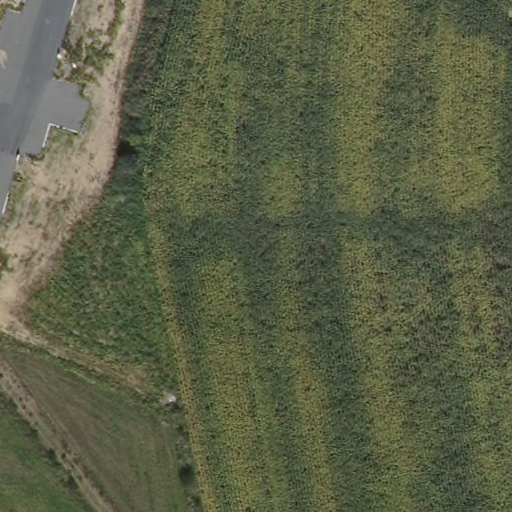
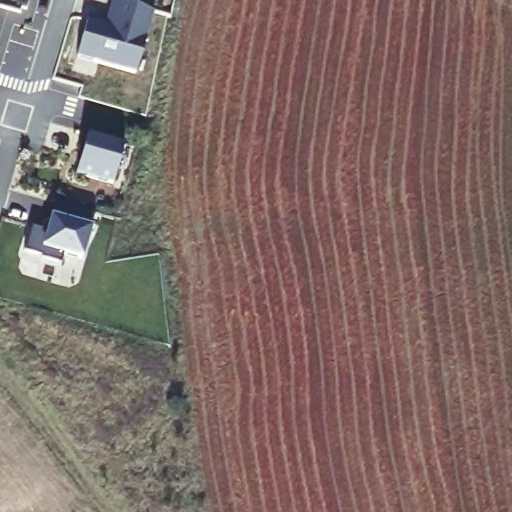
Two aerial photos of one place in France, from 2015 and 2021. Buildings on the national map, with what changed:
new [(85,22),(106,29),(109,21),(105,20),(110,2),(150,14),(133,76),(74,59),(85,22)]
new [(83,151),(78,150),(85,133),(123,145),(113,184),(76,172),(83,151)]
new [(41,229),(43,222),(49,224),(55,202),(95,213),(81,259),(64,254),(61,265),(40,258),(41,257),(23,252),(31,226),(41,229)]

